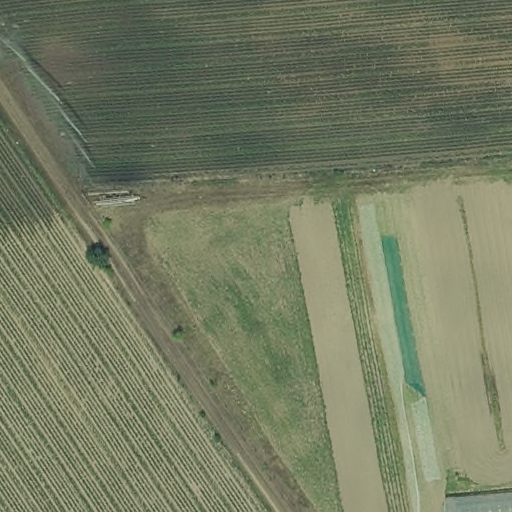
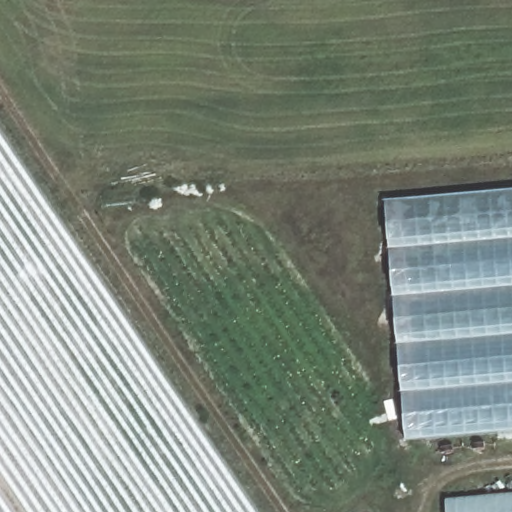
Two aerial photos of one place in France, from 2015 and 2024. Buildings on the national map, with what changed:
new [(386,201),(512,190),(512,431),(406,441),(386,201)]
unchanged [(445,501),(512,496),(512,512),(446,512),(445,501)]

